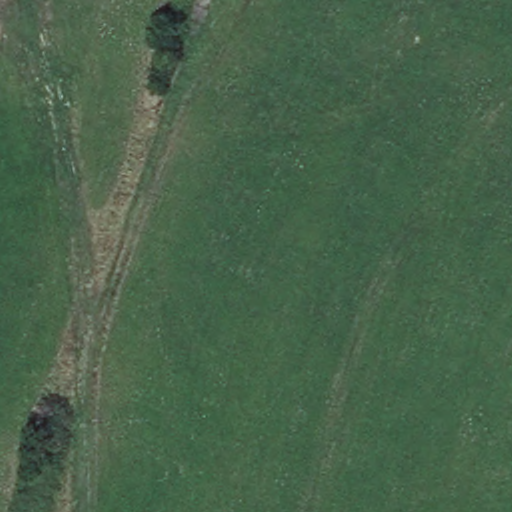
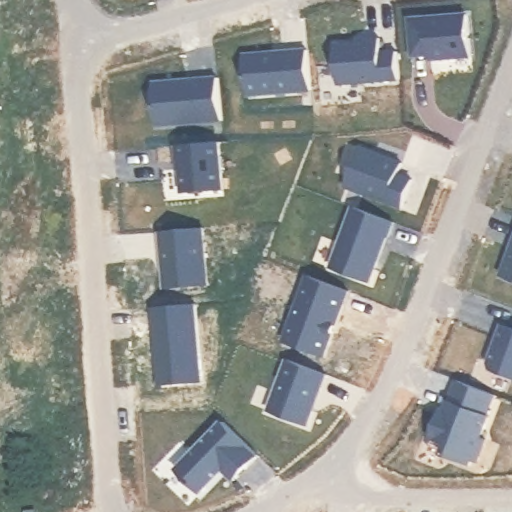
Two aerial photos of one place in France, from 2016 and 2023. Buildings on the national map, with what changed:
new [(471,1),(474,51),(411,55),(409,5),(471,1)]
new [(339,81),(340,39),(398,36),(400,81),(339,81)]
new [(313,49),(314,94),(242,93),(243,51),(313,49)]
new [(217,70),(223,114),(154,123),(149,78),(217,70)]
new [(226,139),(233,196),(181,199),(176,144),(226,139)]
new [(356,142),(404,161),(400,175),(414,181),(398,216),(338,190),(356,142)]
new [(395,221),(370,281),(330,264),(351,206),(395,221)]
new [(203,228),(207,286),(160,289),(158,231),(203,228)]
new [(512,238),(512,281),(496,274),(512,238)]
new [(347,291),(322,357),(279,339),(302,275),(347,291)]
new [(196,304),(199,383),(155,385),(150,309),(196,304)]
new [(512,377),(483,364),(500,323),(512,328),(512,377)]
new [(330,380),(306,431),(266,411),(289,363),(330,380)]
new [(495,395),(481,436),(487,438),(479,462),(473,460),(472,465),(442,454),(446,442),(431,436),(444,401),(449,403),(458,380),(495,395)]
new [(222,416),(258,446),(232,478),(223,471),(205,491),(175,463),(222,416)]

